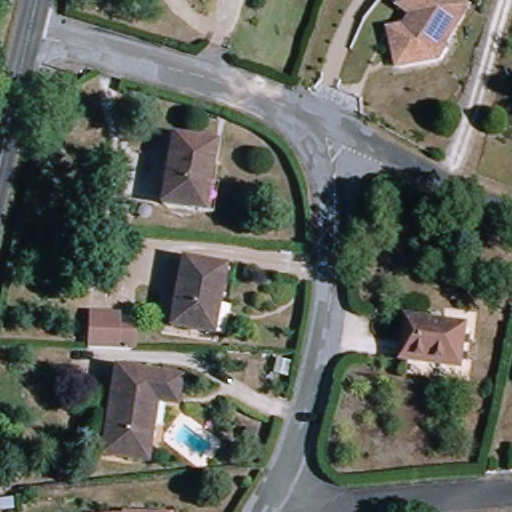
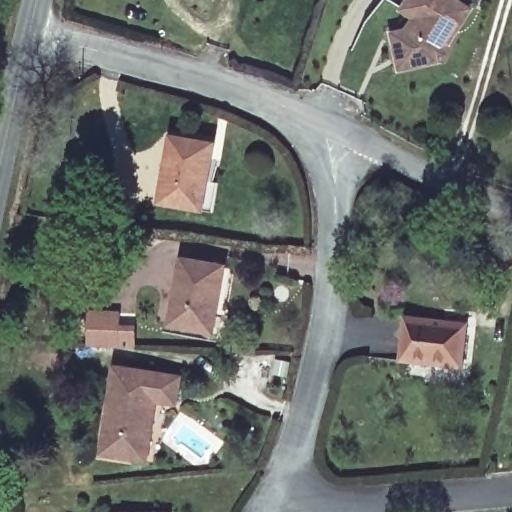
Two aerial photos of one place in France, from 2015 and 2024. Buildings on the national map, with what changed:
unchanged [(448,47),(442,57),(398,66),(390,30),(406,26),(413,15),(399,6),(403,0),(461,0),(468,4),(458,20),(448,36),(445,34),(448,47)]
unchanged [(221,211),(209,208),(168,200),(181,135),(222,142),(216,180),(226,181),(221,211)]
unchanged [(192,257),(234,266),(229,305),(223,305),(219,329),(180,322),(192,257)]
unchanged [(132,345),(118,345),(106,344),(87,343),(89,307),(120,310),(135,310),(132,345)]
unchanged [(415,319),(476,320),(475,364),(415,361),(415,319)]
unchanged [(194,375),(191,401),(170,399),(161,458),(116,453),(126,366),(194,375)]

